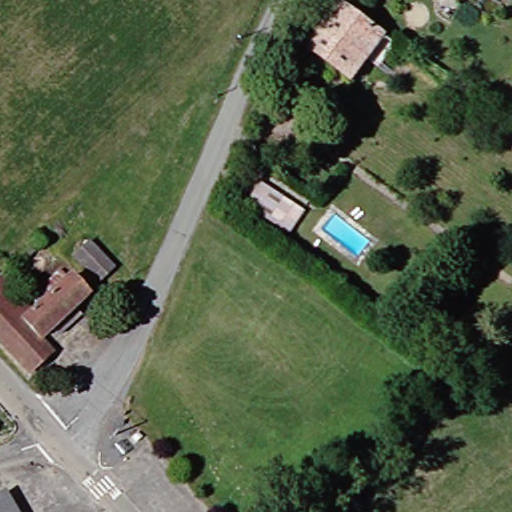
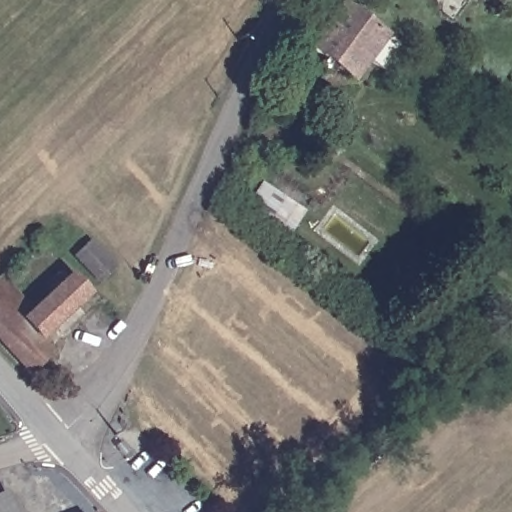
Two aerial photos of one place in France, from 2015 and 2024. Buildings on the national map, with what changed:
unchanged [(395,32),(367,77),(324,50),(353,6),(395,32)]
unchanged [(268,182),(312,209),(294,235),(252,209),(268,182)]
unchanged [(95,244),(120,267),(112,277),(107,282),(82,257),(87,252),(95,244)]
unchanged [(75,281),(92,298),(79,313),(92,322),(72,343),(59,331),(47,343),(59,356),(36,380),(0,338),(0,287),(7,280),(40,316),(75,281)]
unchanged [(0,512),(0,500),(13,492),(25,512),(0,512)]

